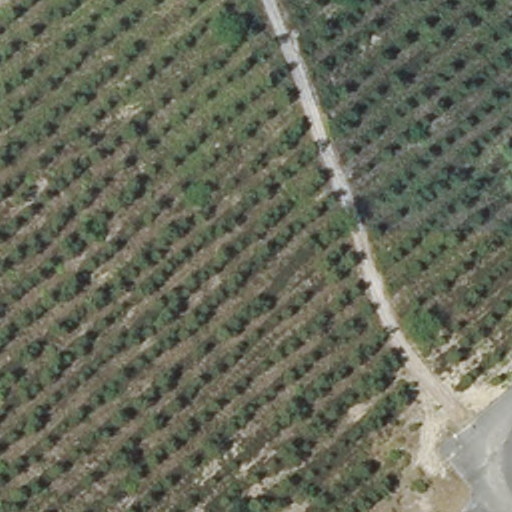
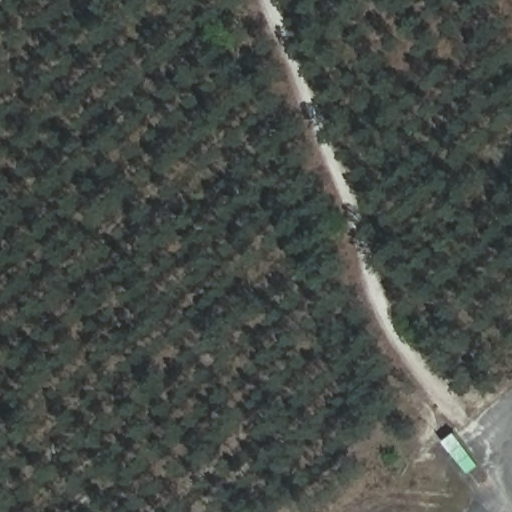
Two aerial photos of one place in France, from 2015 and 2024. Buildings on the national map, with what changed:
[]

